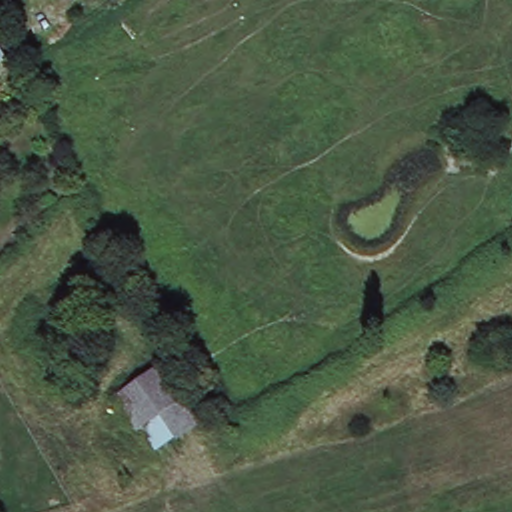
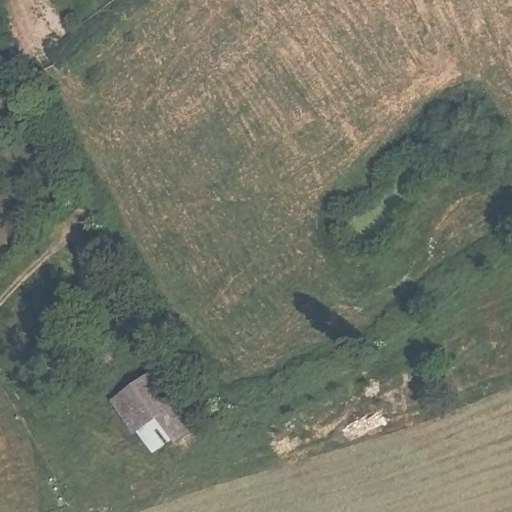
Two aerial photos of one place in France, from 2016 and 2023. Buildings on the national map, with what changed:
unchanged [(164,370),(202,421),(162,450),(125,398),(164,370)]

